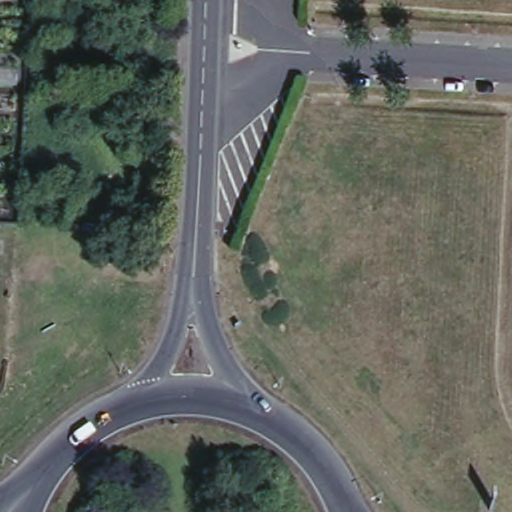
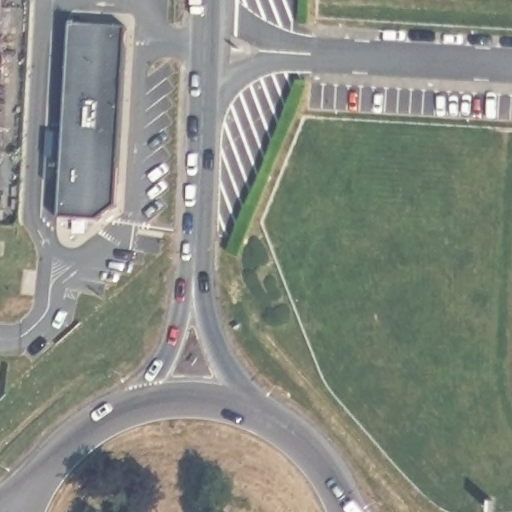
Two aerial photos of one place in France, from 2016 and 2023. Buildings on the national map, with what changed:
new [(0,65),(0,0),(3,0),(0,65)]
new [(130,36),(121,212),(102,226),(65,225),(75,34),(130,36)]

